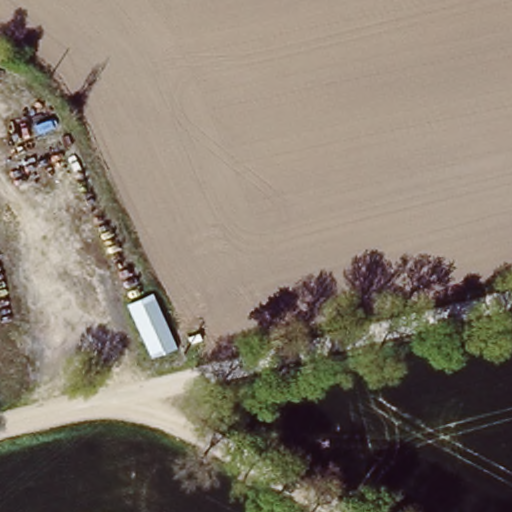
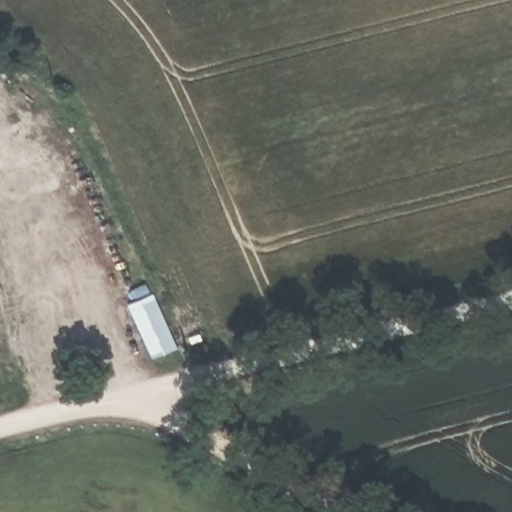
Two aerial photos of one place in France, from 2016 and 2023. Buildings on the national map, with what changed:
unchanged [(154,292),(180,349),(147,364),(122,304),(154,292)]

